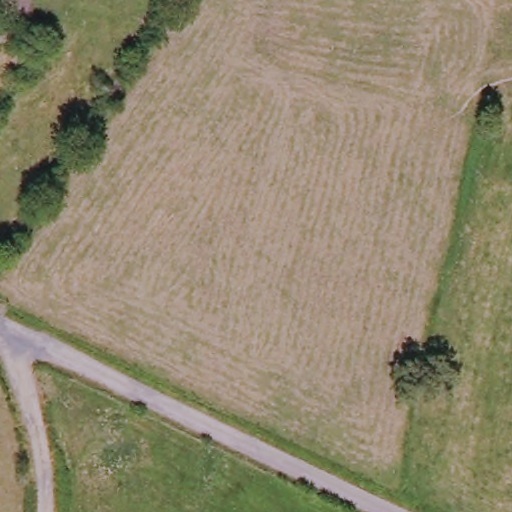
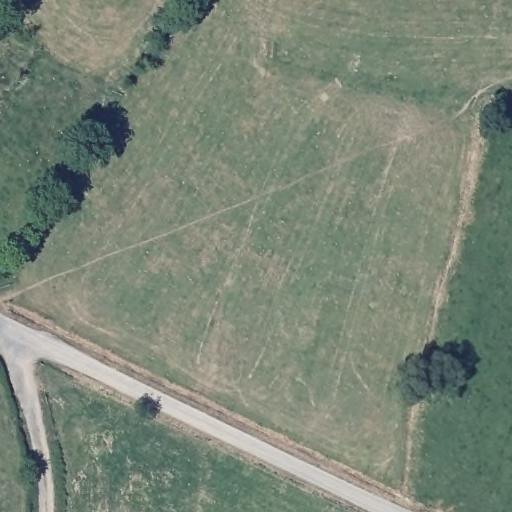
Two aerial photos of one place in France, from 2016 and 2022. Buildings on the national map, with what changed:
[]

